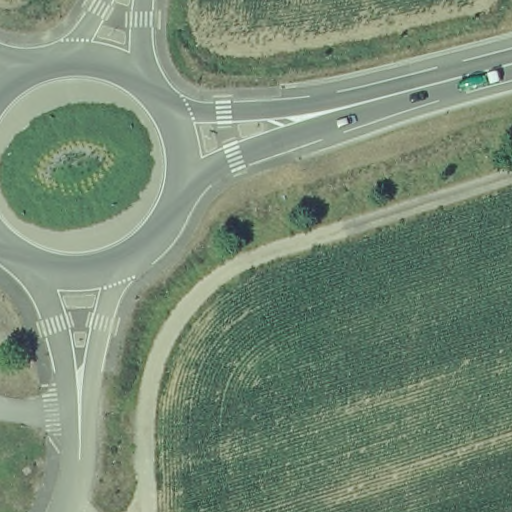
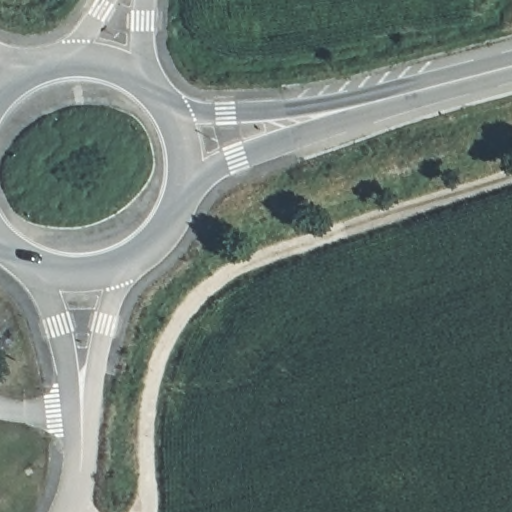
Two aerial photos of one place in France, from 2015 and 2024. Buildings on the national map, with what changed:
[]

